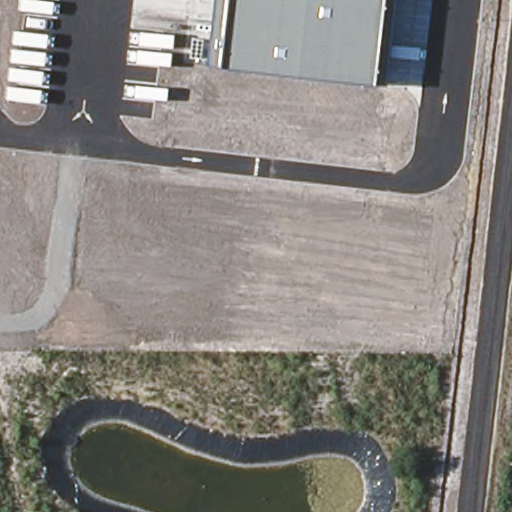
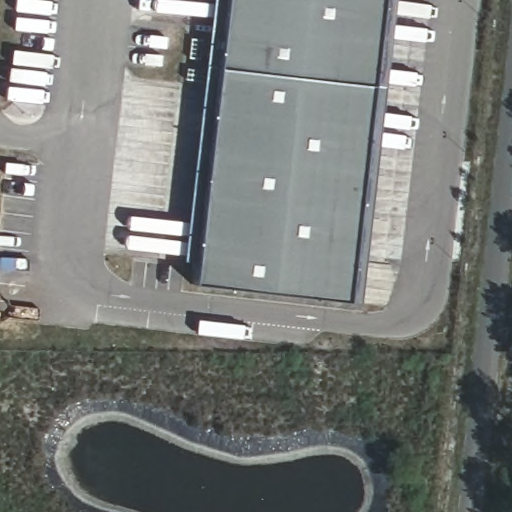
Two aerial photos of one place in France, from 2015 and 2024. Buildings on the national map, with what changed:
unchanged [(206,63),(213,0),(381,0),(371,84),(218,65),(206,63)]
new [(346,302),(192,284),(195,262),(183,261),(206,63),(218,65),(371,84),(346,302)]

